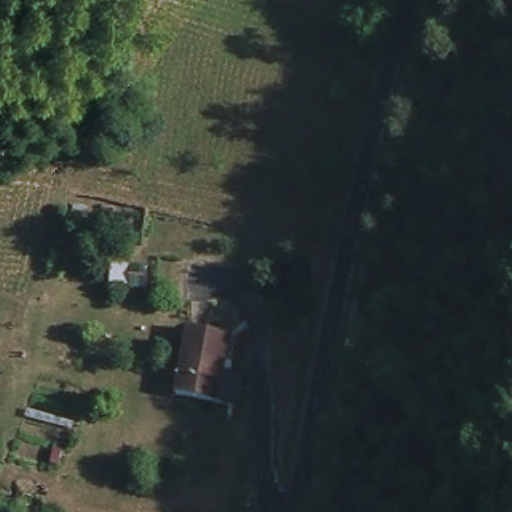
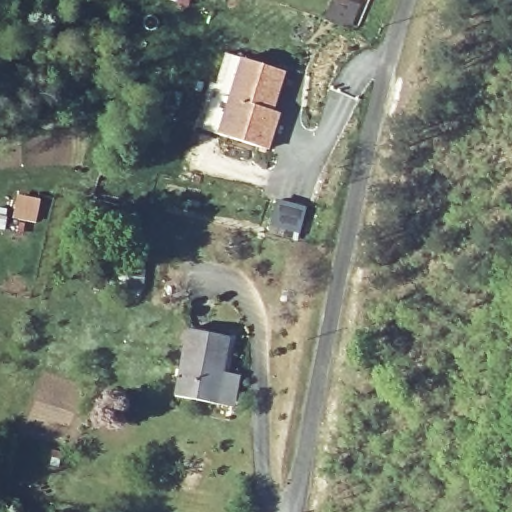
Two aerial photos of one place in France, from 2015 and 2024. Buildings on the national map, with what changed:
new [(285,70),(270,118),(277,121),(268,150),(202,129),(225,53),(285,70)]
unchanged [(205,399),(170,392),(186,324),(230,335),(223,366),(215,401),(205,399)]

